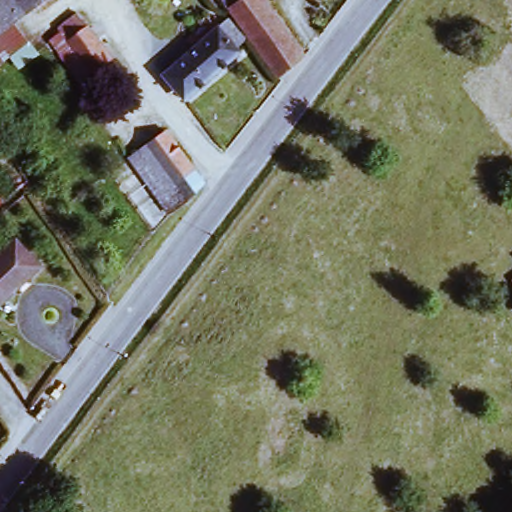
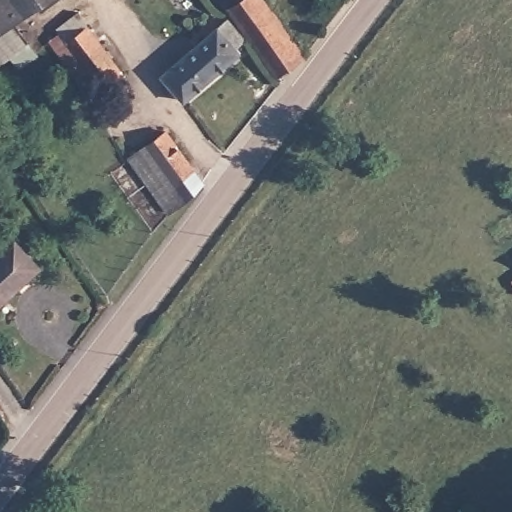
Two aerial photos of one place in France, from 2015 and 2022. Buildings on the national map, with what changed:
unchanged [(51,45),(36,56),(28,46),(15,57),(0,38),(0,0),(46,0),(27,15),(51,45)]
unchanged [(274,68),(225,0),(256,0),(293,50),(274,68)]
unchanged [(60,31),(56,26),(75,11),(83,24),(97,41),(123,75),(106,89),(95,97),(49,40),(60,31)]
unchanged [(167,63),(219,25),(230,18),(252,48),(240,57),(191,94),(167,63)]
unchanged [(202,183),(186,197),(144,144),(160,131),(202,183)]
unchanged [(171,208),(129,154),(144,144),(186,197),(171,208)]
unchanged [(0,252),(12,240),(36,263),(0,299),(0,252)]

